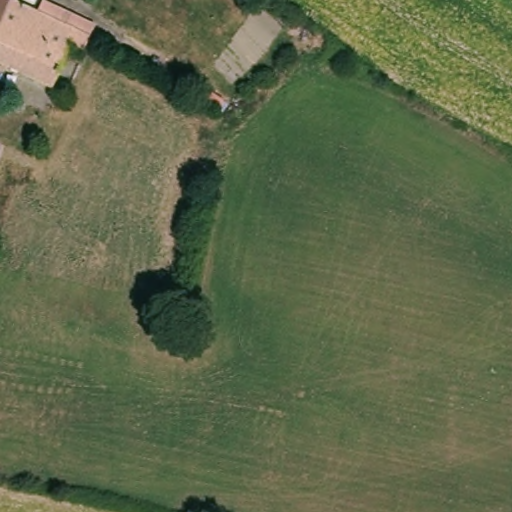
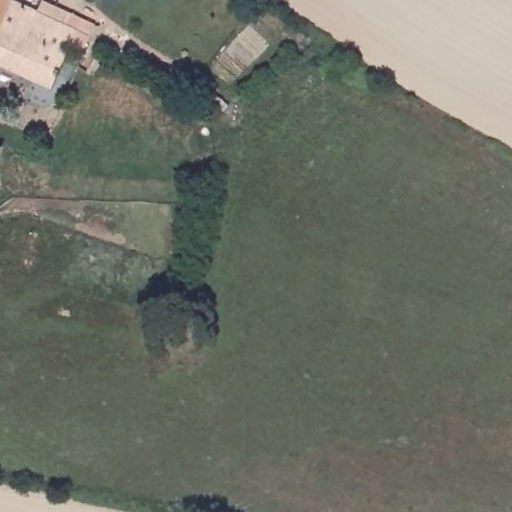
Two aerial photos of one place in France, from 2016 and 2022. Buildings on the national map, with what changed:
unchanged [(0,23),(0,0),(9,4),(0,23)]
unchanged [(84,59),(66,100),(0,70),(0,23),(9,4),(87,42),(85,47),(81,55),(84,59)]

